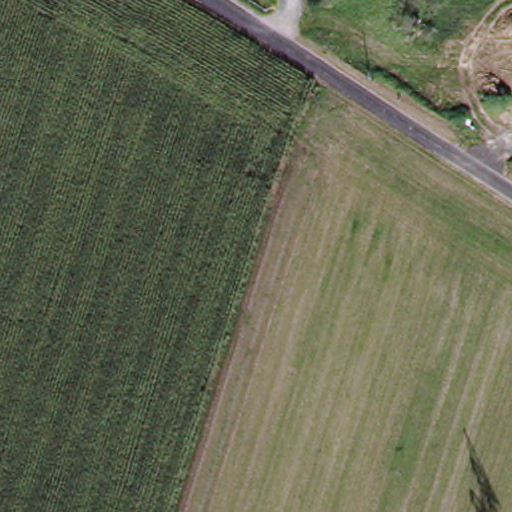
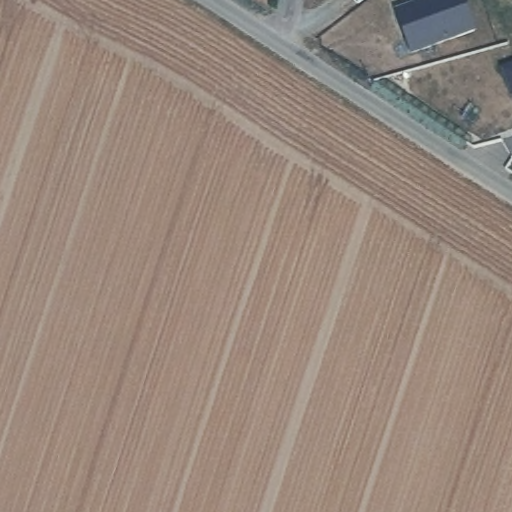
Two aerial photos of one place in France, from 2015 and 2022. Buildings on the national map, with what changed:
new [(460,0),(473,36),(411,58),(397,17),(434,4),(433,0),(460,0)]

